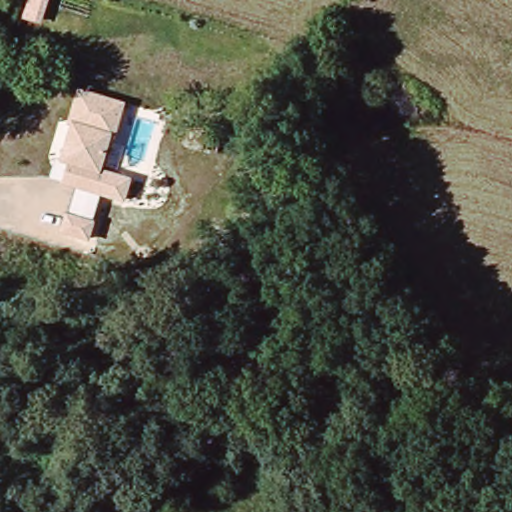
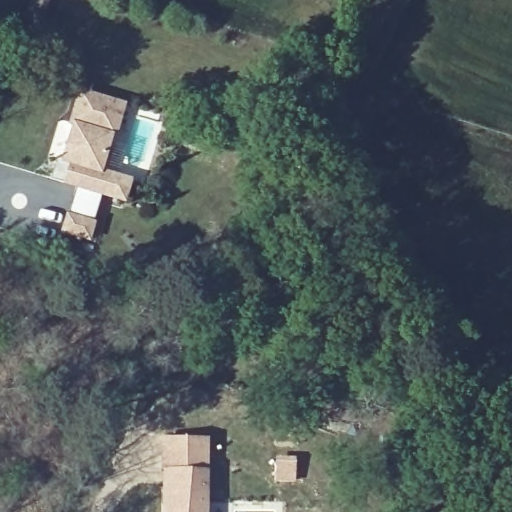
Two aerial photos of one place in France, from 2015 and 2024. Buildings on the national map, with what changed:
unchanged [(104,167),(132,177),(126,203),(62,184),(68,161),(59,159),(70,120),(78,89),(128,102),(118,140),(112,137),(104,167)]
unchanged [(97,220),(91,242),(59,233),(66,210),(97,220)]
new [(165,500),(166,470),(164,470),(164,438),(205,438),(205,512),(165,512),(165,500)]

